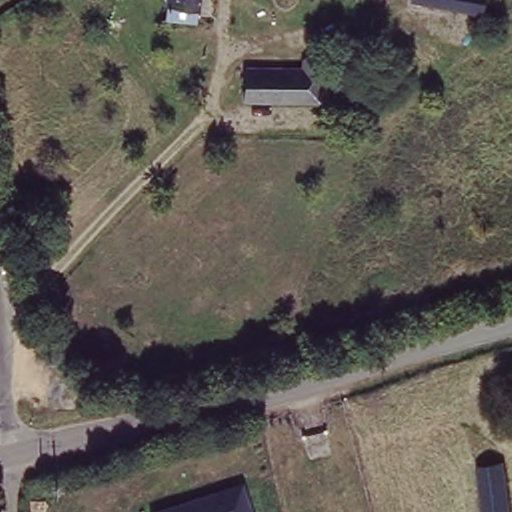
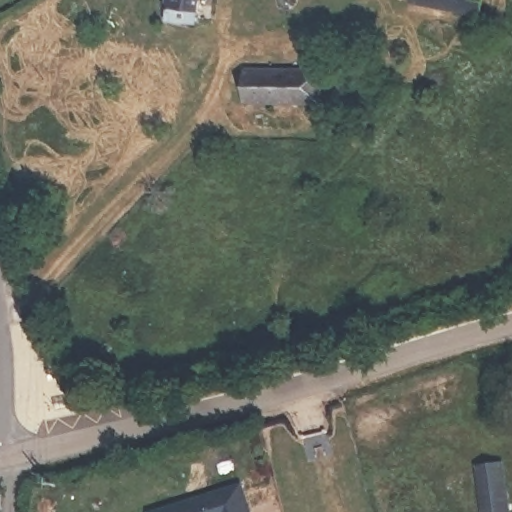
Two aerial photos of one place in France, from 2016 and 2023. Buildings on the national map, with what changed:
unchanged [(161,17),(164,0),(200,0),(198,22),(161,17)]
unchanged [(414,0),(488,0),(488,9),(414,10),(414,0)]
unchanged [(247,65),(300,68),(299,58),(325,60),(322,105),(243,104),(247,65)]
unchanged [(504,461),(508,512),(479,512),(474,464),(504,461)]
unchanged [(241,482),(250,512),(149,512),(241,482)]

